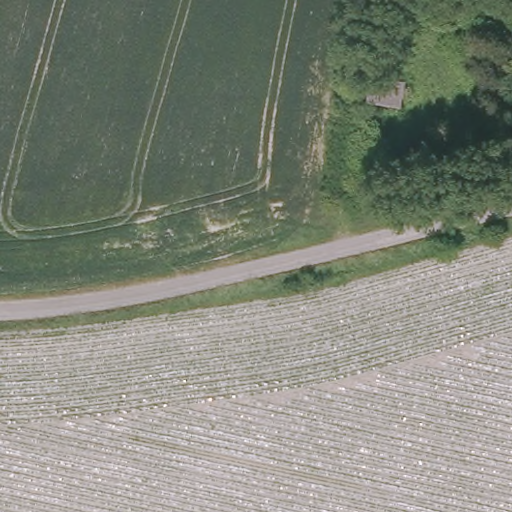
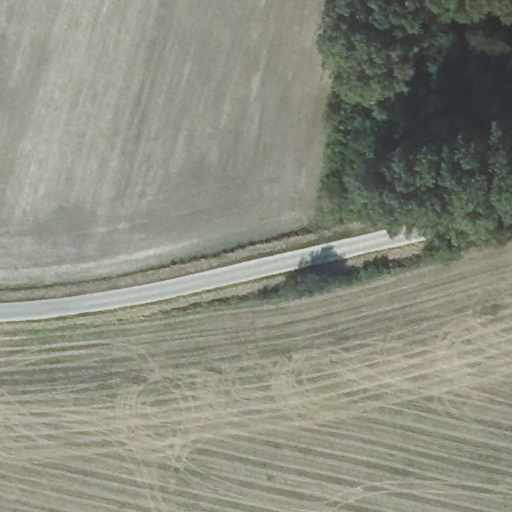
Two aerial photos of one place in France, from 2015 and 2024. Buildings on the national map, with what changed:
unchanged [(398,110),(362,103),(370,72),(407,81),(398,110)]

